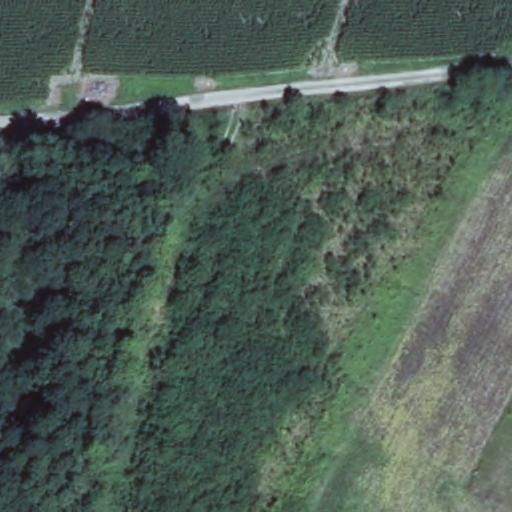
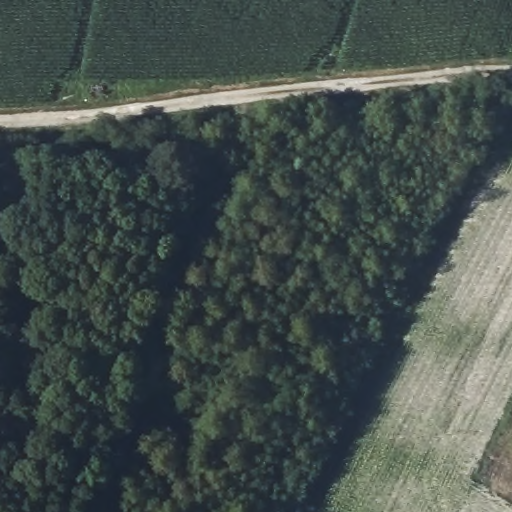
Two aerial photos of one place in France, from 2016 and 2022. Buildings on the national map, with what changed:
unchanged [(71,98),(55,99),(53,84),(70,84),(71,98)]

